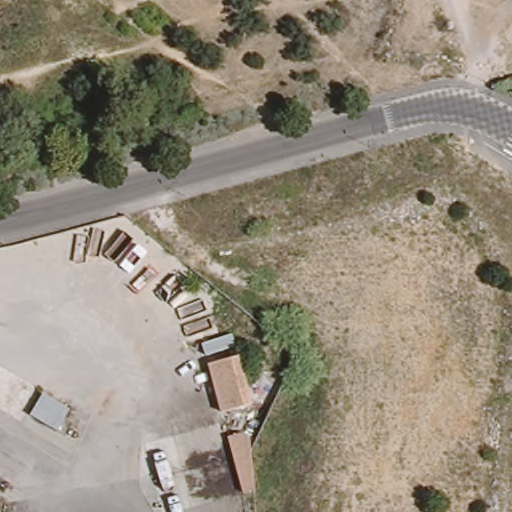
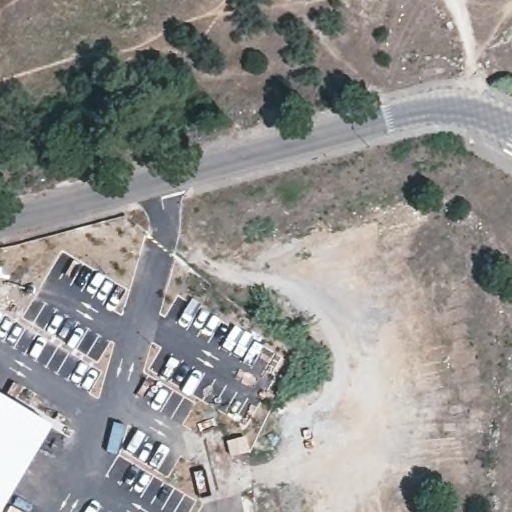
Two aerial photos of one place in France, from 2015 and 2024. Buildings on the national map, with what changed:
demolished [(200,359),(243,344),(259,410),(223,423),(200,359)]
new [(3,506),(0,505),(0,395),(50,425),(3,506)]
demolished [(226,441),(232,437),(238,436),(243,439),(248,493),(238,495),(226,441)]
unchanged [(0,511),(0,505),(3,506),(0,511)]

